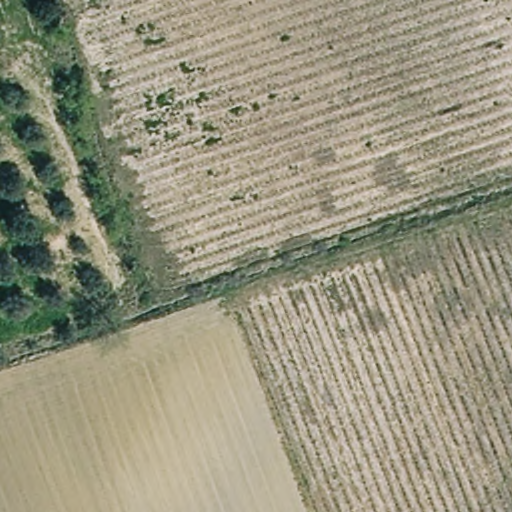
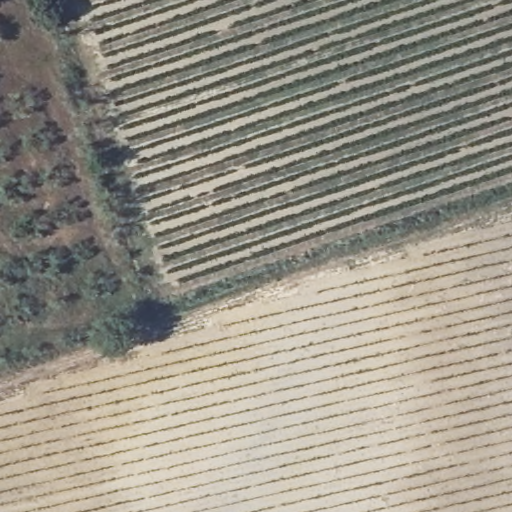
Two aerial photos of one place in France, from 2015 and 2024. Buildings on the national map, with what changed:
[]

